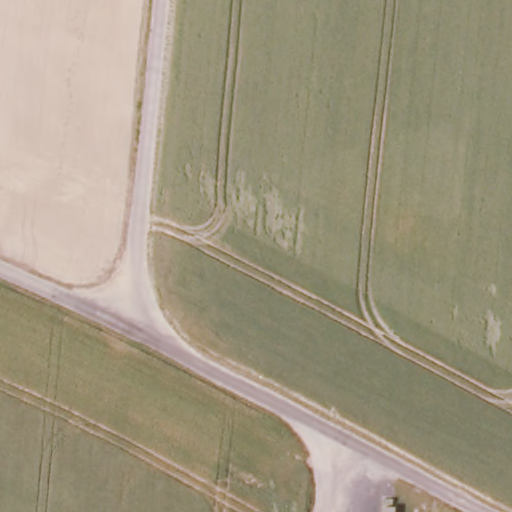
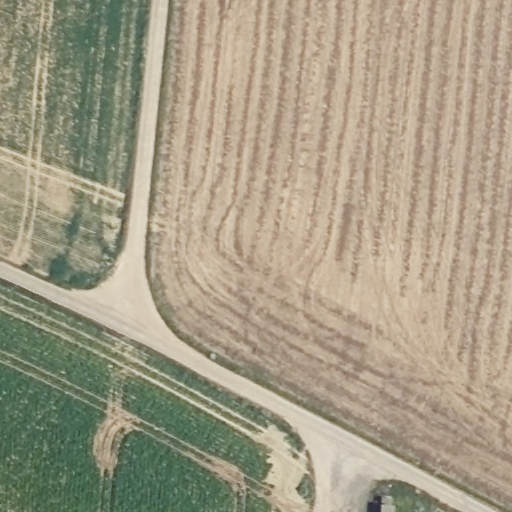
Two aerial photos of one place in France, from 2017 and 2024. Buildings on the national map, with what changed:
unchanged [(380,510),(392,510),(392,512),(380,512),(380,510)]

